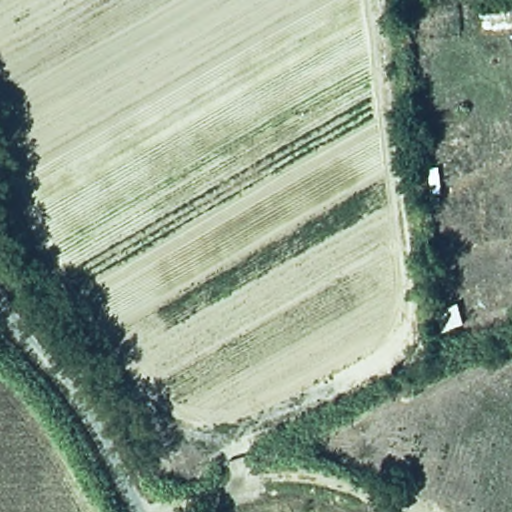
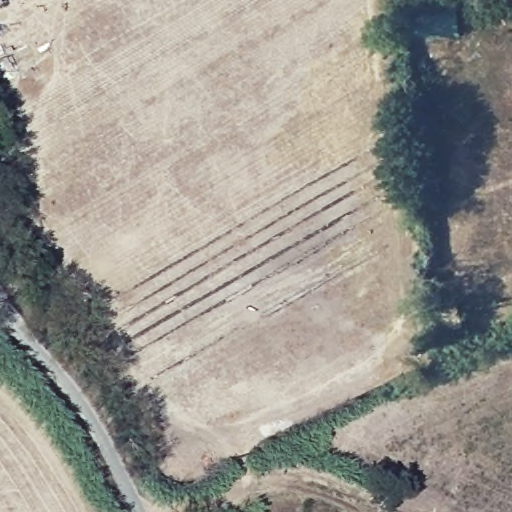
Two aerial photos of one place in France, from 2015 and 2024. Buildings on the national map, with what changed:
unchanged [(471,0),(512,0),(512,18),(474,24),(471,0)]

